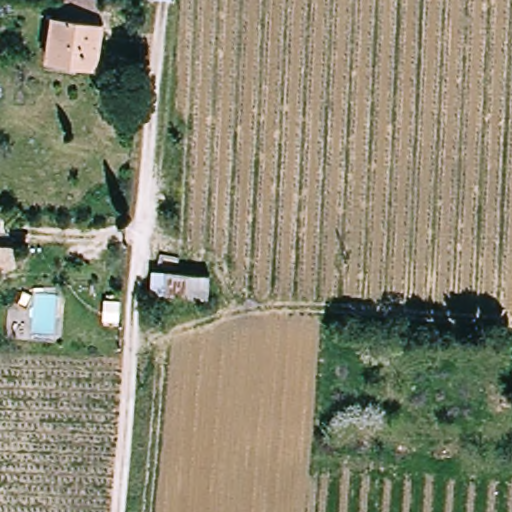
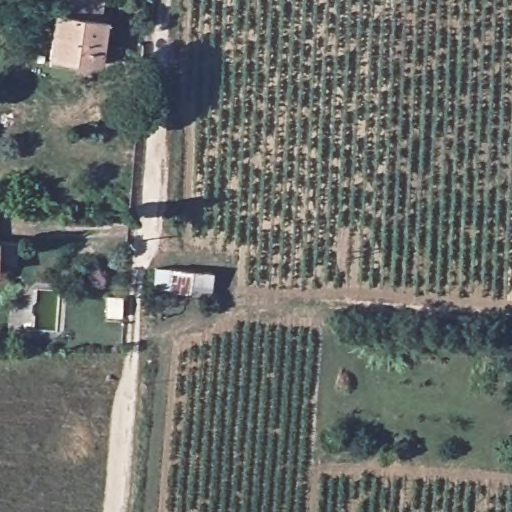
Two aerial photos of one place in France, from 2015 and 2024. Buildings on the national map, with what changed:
unchanged [(107,22),(102,66),(52,60),(57,17),(107,22)]
unchanged [(168,295),(169,270),(212,274),(210,297),(210,298),(168,295)]

